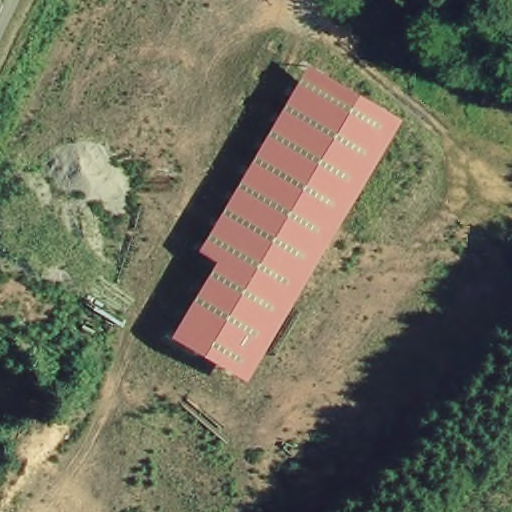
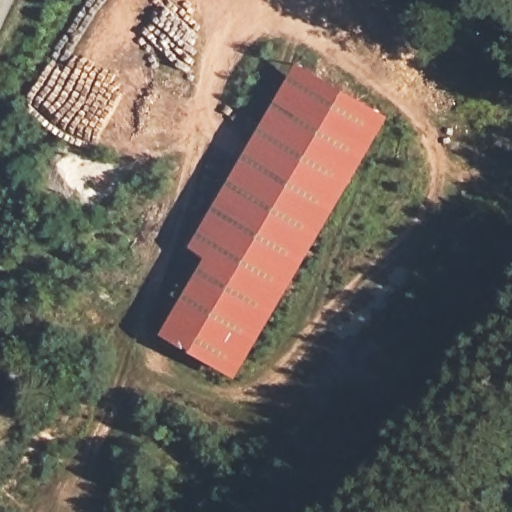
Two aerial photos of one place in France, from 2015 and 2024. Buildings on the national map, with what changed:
unchanged [(243,377),(169,334),(212,260),(195,248),(305,62),(395,116),(243,377)]

